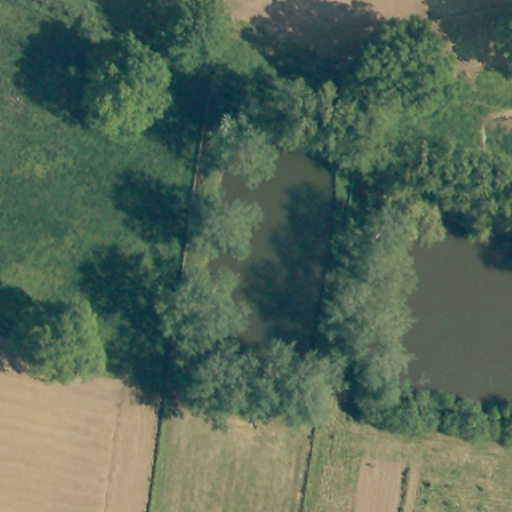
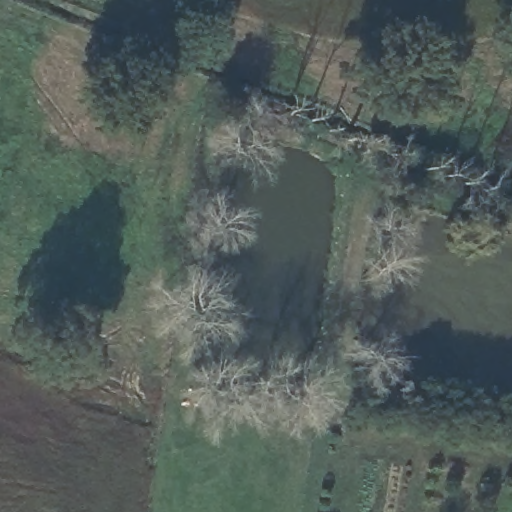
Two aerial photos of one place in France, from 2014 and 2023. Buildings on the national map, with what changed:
[]

